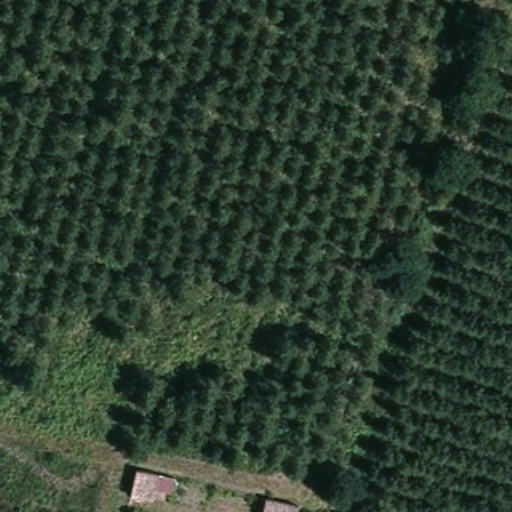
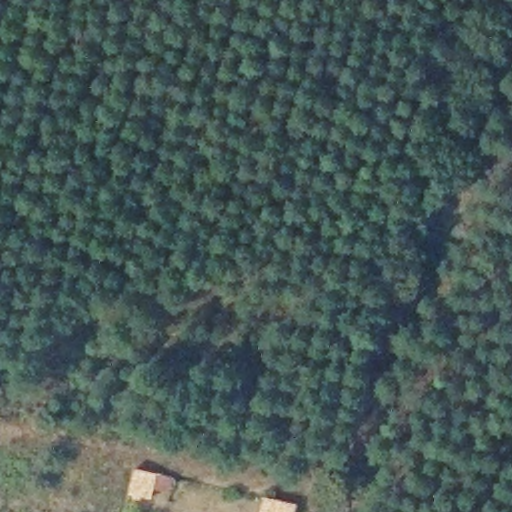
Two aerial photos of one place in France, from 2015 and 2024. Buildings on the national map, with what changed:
unchanged [(160,510),(137,505),(143,477),(165,482),(160,510)]
unchanged [(294,512),(272,512),(273,507),(294,512)]

